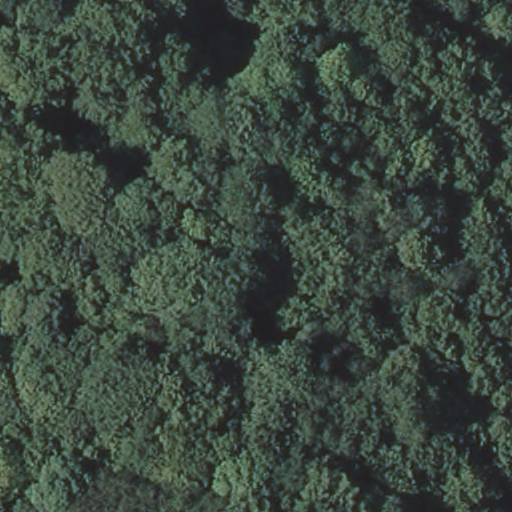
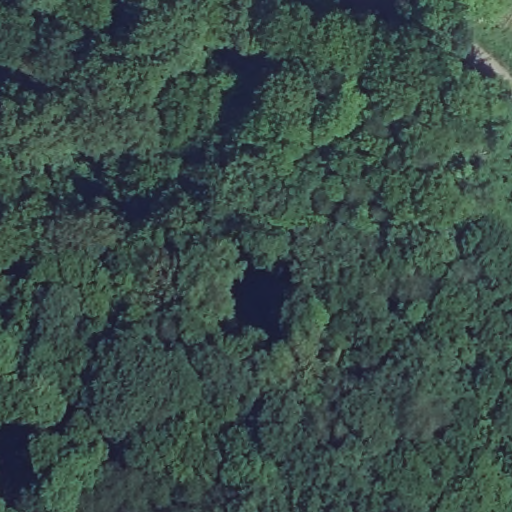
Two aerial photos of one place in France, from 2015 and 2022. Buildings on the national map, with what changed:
[]

